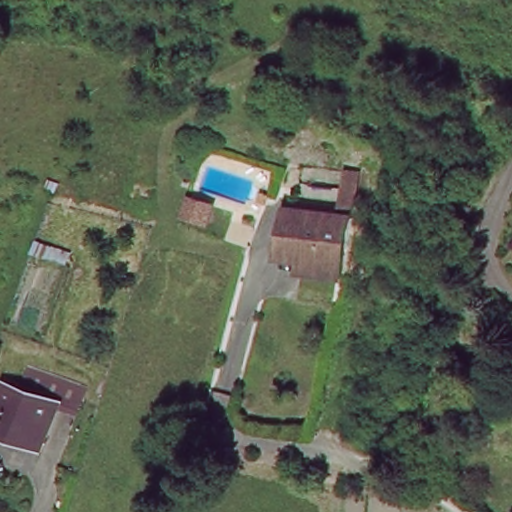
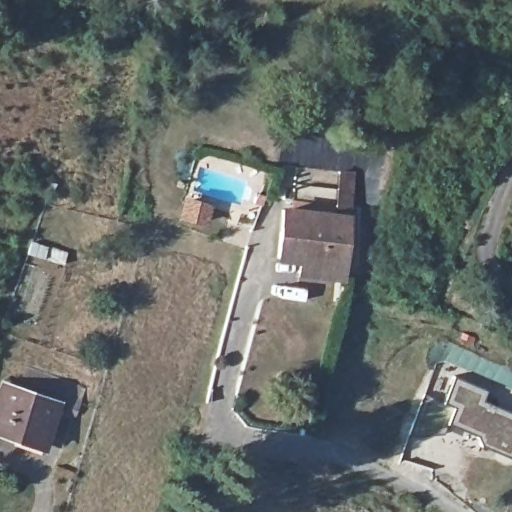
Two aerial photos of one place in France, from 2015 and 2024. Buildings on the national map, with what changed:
unchanged [(310,272),(309,260),(283,260),(283,214),(346,212),(346,260),(346,271),(310,272)]
new [(462,429),(460,435),(450,431),(453,425),(448,423),(442,434),(415,438),(408,435),(425,395),(445,401),(455,375),(488,390),(483,401),(512,414),(512,455),(510,458),(481,446),(476,435),(462,429)]
unchanged [(73,423),(55,417),(40,455),(0,440),(0,391),(1,388),(17,395),(23,378),(82,399),(73,423)]

